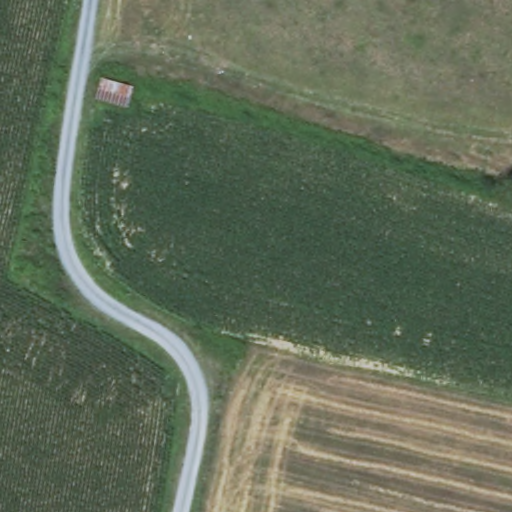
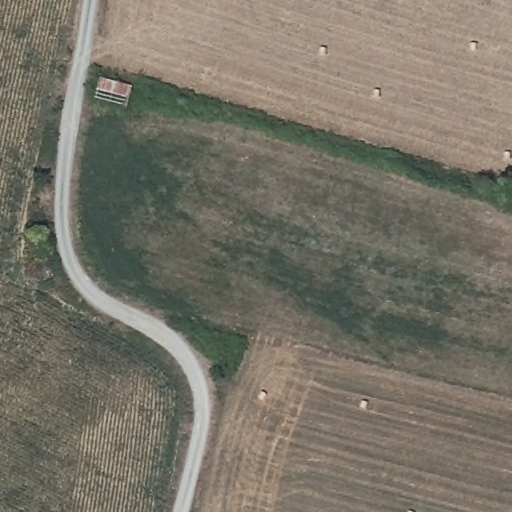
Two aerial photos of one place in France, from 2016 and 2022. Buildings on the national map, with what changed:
unchanged [(125,107),(93,99),(103,72),(133,84),(125,107)]

